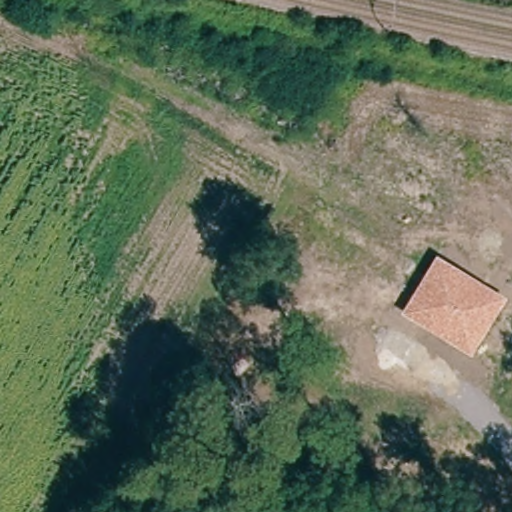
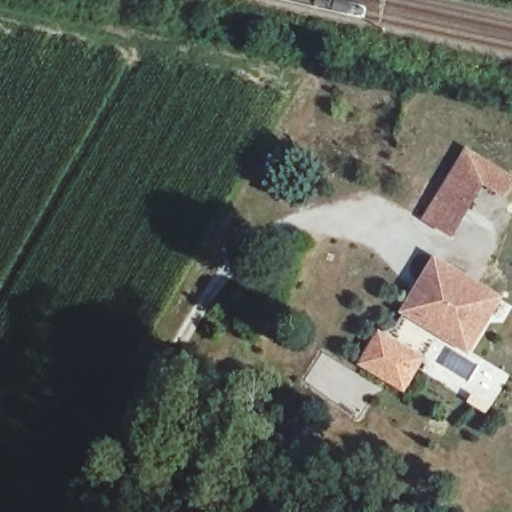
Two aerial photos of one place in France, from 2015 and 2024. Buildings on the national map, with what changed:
new [(512,172),(512,192),(508,199),(486,186),(455,236),(423,219),(468,146),(512,172)]
unchanged [(507,298),(470,357),(399,313),(435,255),(507,298)]
new [(427,357),(406,392),(359,365),(380,329),(427,357)]

